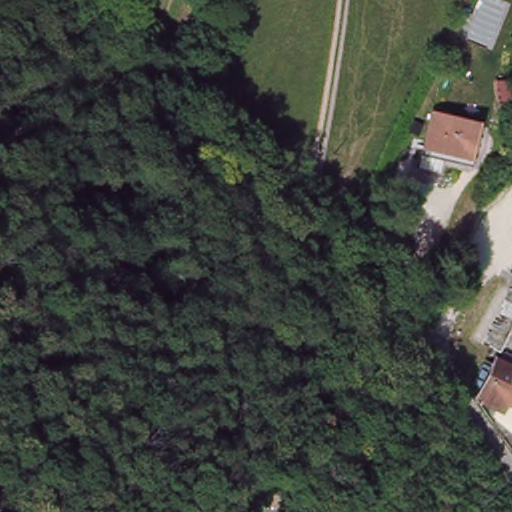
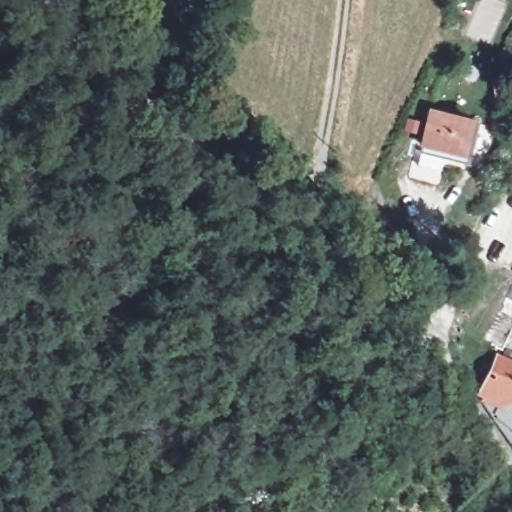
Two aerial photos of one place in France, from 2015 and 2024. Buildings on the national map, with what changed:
unchanged [(432,112),(479,124),(469,163),(423,151),(424,143),(432,112)]
unchanged [(495,354),(510,323),(512,324),(512,358),(511,361),(495,354)]
unchanged [(512,372),(512,434),(509,431),(509,429),(507,426),(510,419),(492,409),(496,399),(479,390),(489,370),(506,376),(508,370),(512,372)]

